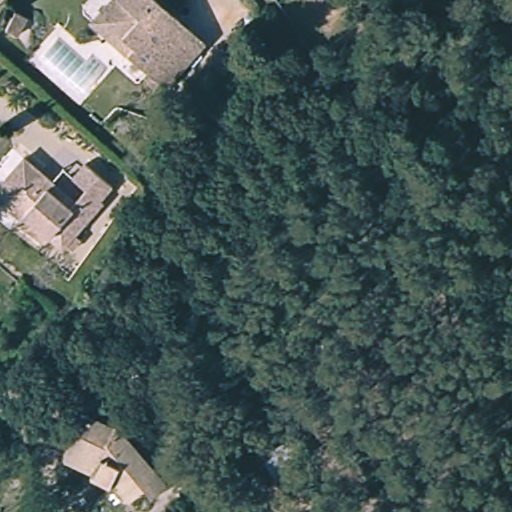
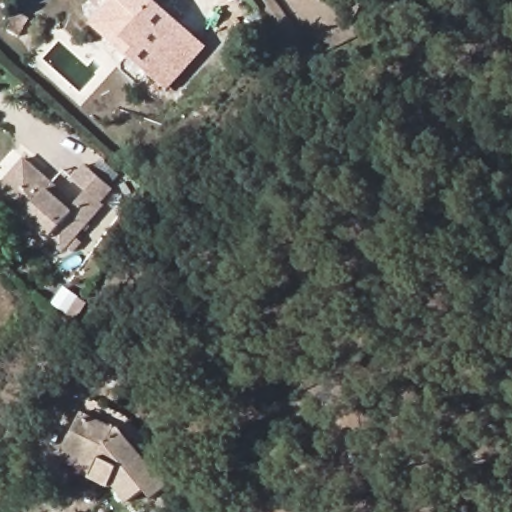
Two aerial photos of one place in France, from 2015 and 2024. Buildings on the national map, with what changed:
unchanged [(202,46),(163,90),(120,53),(129,44),(104,23),(122,0),(151,0),(202,46)]
unchanged [(65,172),(76,182),(90,167),(118,189),(105,205),(110,208),(70,254),(58,245),(52,252),(31,234),(38,226),(23,216),(20,219),(0,201),(0,184),(26,153),(58,179),(65,172)]
unchanged [(108,434),(115,424),(168,489),(148,504),(138,492),(121,506),(107,486),(100,496),(78,486),(83,480),(55,463),(82,418),(108,434)]

